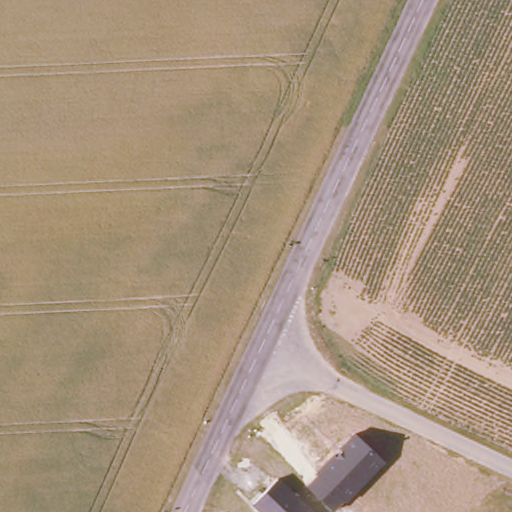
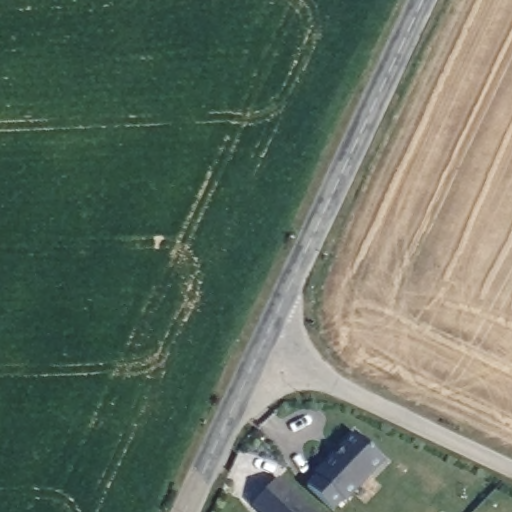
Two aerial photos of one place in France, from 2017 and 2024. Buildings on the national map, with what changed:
unchanged [(313,473),(333,454),(337,457),(341,450),(338,448),(352,433),(385,461),(346,503),(343,501),(335,511),(306,485),(316,475),(313,473)]
unchanged [(252,504),(277,477),(314,512),(259,512),(252,504)]

